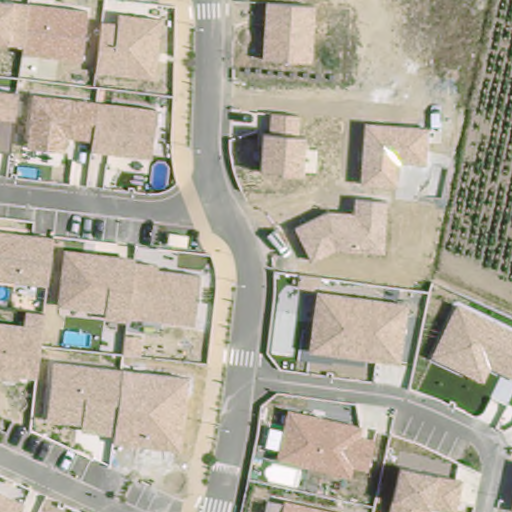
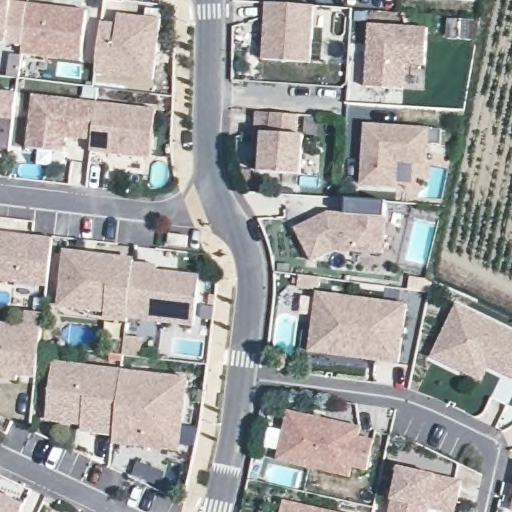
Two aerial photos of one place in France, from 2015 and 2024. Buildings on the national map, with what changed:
unchanged [(82,63),(22,56),(23,46),(0,44),(0,0),(2,0),(89,9),(82,63)]
unchanged [(315,4),(312,63),(263,60),(266,3),(315,4)]
unchanged [(117,23),(118,14),(164,18),(156,79),(95,73),(101,21),(117,23)]
new [(446,18),(475,20),(473,41),(444,38),(446,18)]
new [(369,23),(430,26),(427,68),(407,66),(406,91),(365,88),(369,23)]
unchanged [(18,91),(11,153),(0,151),(0,89),(18,91)]
unchanged [(157,108),(151,160),(90,153),(91,141),(67,138),(65,155),(26,150),(33,94),(157,108)]
unchanged [(300,116),(298,135),(306,135),(302,176),(259,174),(262,132),(270,132),(271,113),(300,116)]
unchanged [(432,126),(429,166),(400,165),(398,189),(361,185),(365,123),(432,126)]
unchanged [(385,254),(336,252),(313,264),(294,229),(331,210),(354,214),(355,200),(388,202),(385,254)]
unchanged [(55,236),(48,287),(0,282),(0,230),(55,236)]
unchanged [(136,256),(135,263),(159,266),(159,270),(202,275),(196,326),(129,319),(129,323),(104,320),(104,314),(57,307),(65,249),(136,256)]
unchanged [(408,303),(401,364),(309,354),(317,292),(408,303)]
unchanged [(504,376),(490,368),(482,383),(431,357),(457,304),(512,329),(512,398),(512,399),(496,391),(504,376)]
unchanged [(45,313),(37,379),(17,377),(16,382),(0,380),(0,321),(24,324),(26,311),(45,313)]
unchanged [(190,376),(182,450),(113,444),(114,435),(82,432),(82,425),(48,422),(54,360),(190,376)]
unchanged [(363,425),(361,437),(376,440),(369,472),(353,469),(350,477),(277,462),(288,410),(363,425)]
unchanged [(463,481),(456,512),(438,512),(431,511),(431,512),(389,512),(399,467),(463,481)]
unchanged [(26,503),(22,512),(0,512),(0,492),(26,503)]
unchanged [(341,512),(264,512),(267,501),(283,504),(283,500),(341,512)]

